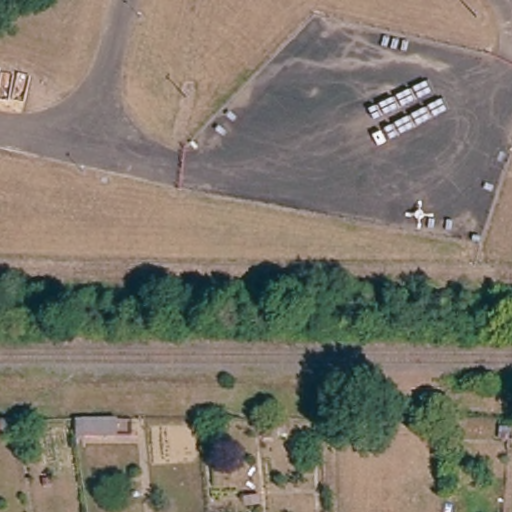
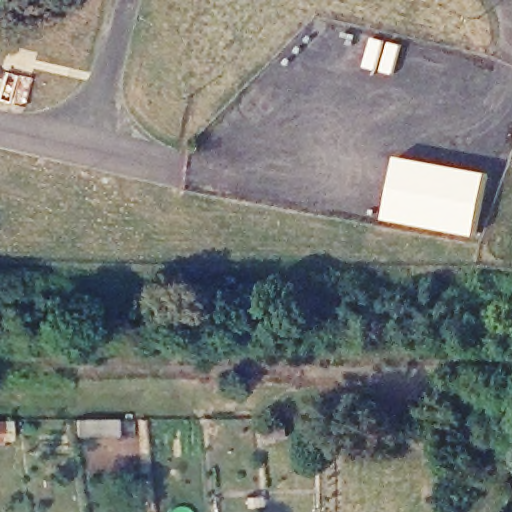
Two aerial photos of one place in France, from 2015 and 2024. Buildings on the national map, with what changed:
new [(384,220),(397,157),(488,174),(476,236),(384,220)]
unchanged [(69,446),(71,420),(111,420),(111,447),(69,446)]

